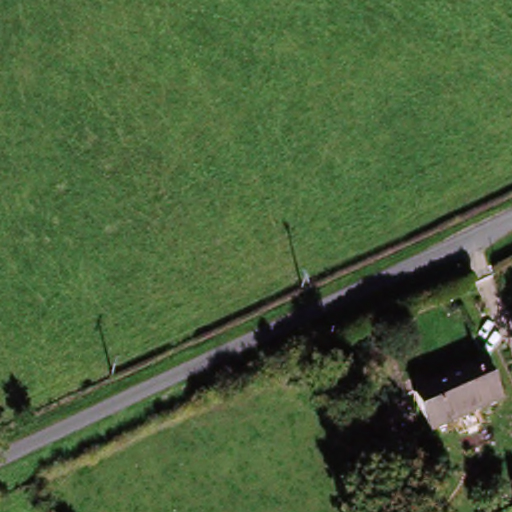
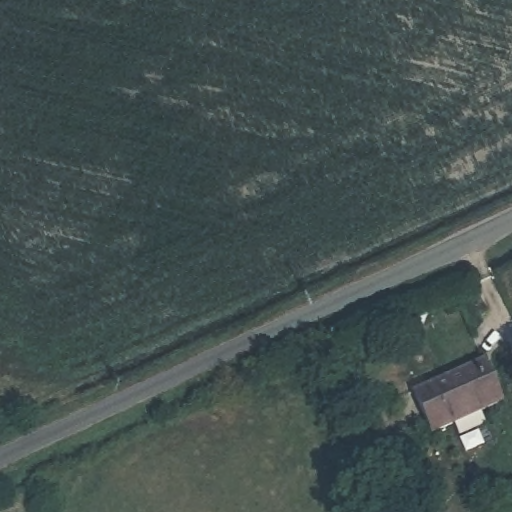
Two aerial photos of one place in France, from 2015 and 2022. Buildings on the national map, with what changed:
unchanged [(426,433),(410,393),(477,364),(495,404),(426,433)]
unchanged [(413,512),(394,512),(410,504),(413,512)]

